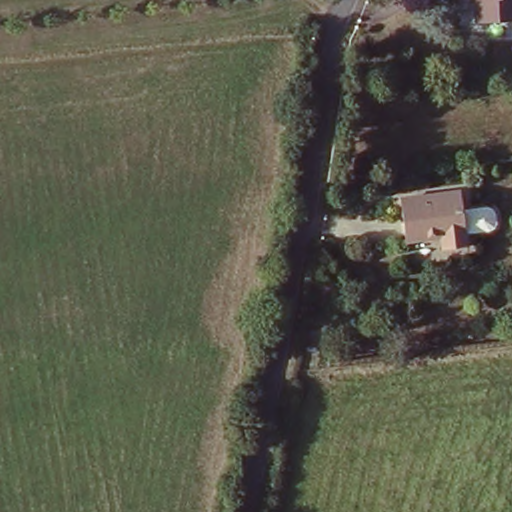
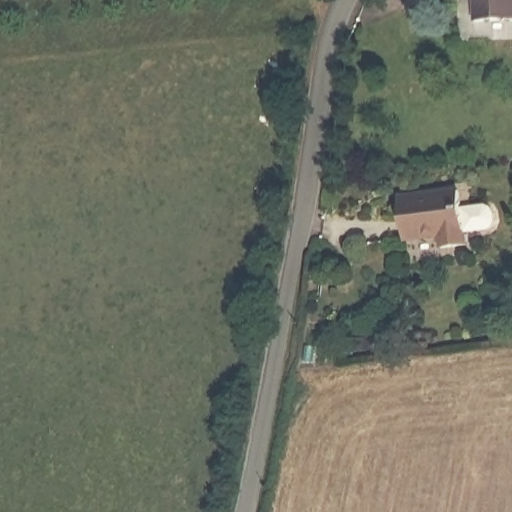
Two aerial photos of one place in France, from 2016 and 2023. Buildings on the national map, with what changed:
unchanged [(481,16),(480,0),(512,0),(512,15),(481,16)]
unchanged [(468,191),(474,247),(447,251),(446,232),(411,236),(407,197),(468,191)]

